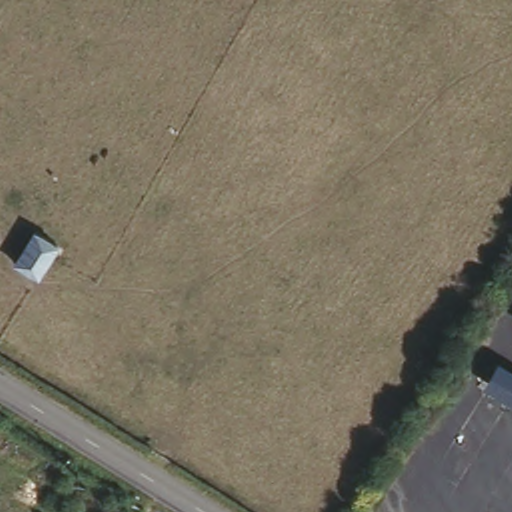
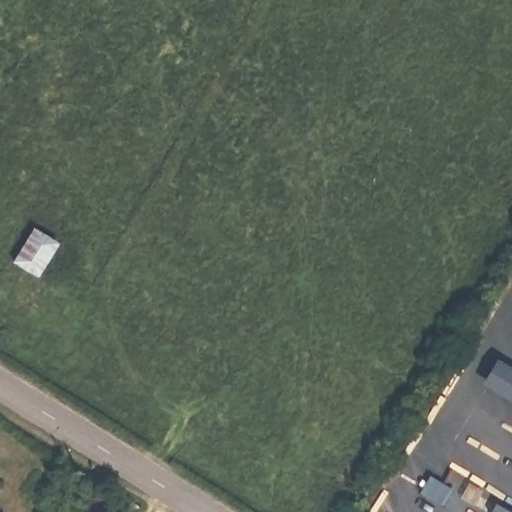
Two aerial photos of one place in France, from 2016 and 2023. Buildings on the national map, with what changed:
unchanged [(57,246),(34,279),(9,263),(31,231),(57,246)]
unchanged [(512,403),(484,385),(499,359),(512,367),(512,403)]

